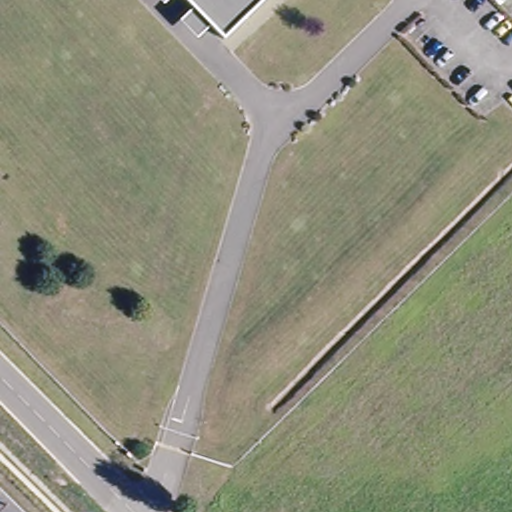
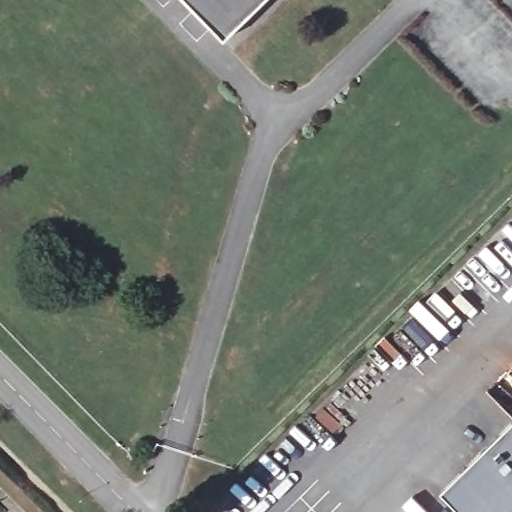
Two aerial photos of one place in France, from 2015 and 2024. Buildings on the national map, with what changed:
unchanged [(221,37),(189,0),(262,0),(221,37)]
new [(463,512),(442,491),(512,423),(512,512),(463,512)]

